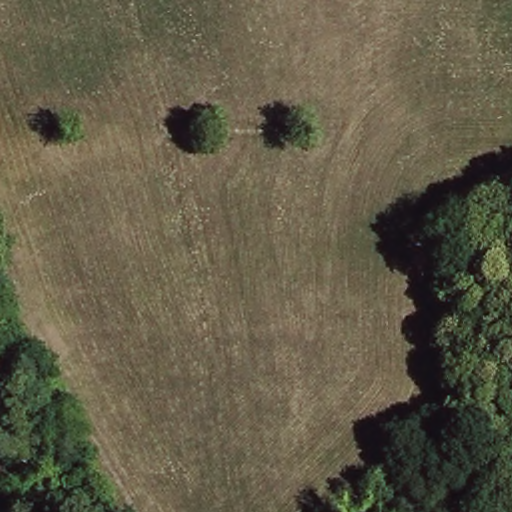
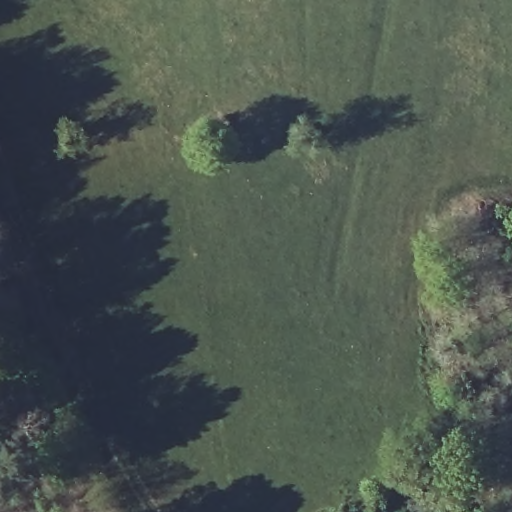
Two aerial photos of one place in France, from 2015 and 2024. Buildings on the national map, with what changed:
unchanged [(472,512),(345,512),(356,509),(487,476),(495,506),(472,512)]

